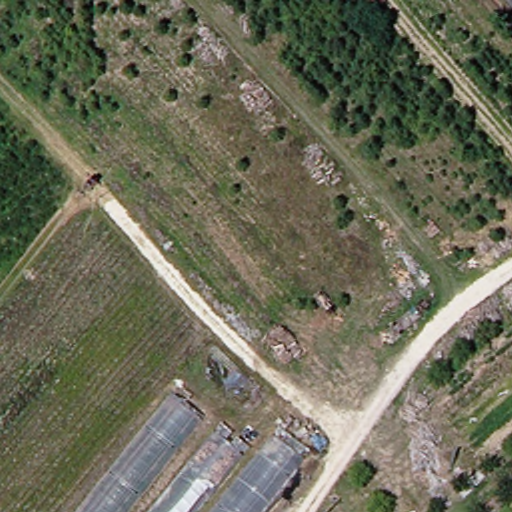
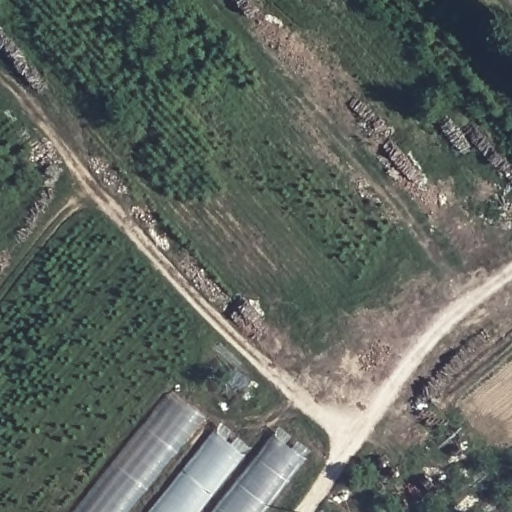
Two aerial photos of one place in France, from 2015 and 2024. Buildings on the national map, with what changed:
unchanged [(179,401),(208,422),(137,512),(92,512),(179,401)]
unchanged [(223,425),(252,447),(202,512),(153,512),(223,425)]
unchanged [(280,430),(311,451),(262,512),(214,512),(280,430)]

